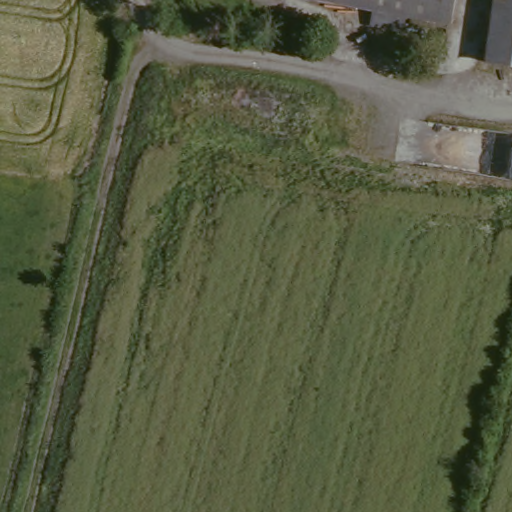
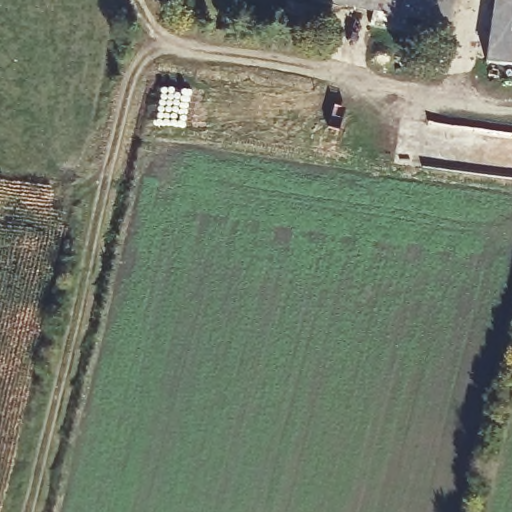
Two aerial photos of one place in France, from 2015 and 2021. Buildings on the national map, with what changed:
unchanged [(328,0),(459,0),(455,24),(328,0)]
unchanged [(498,0),(512,0),(512,66),(491,62),(498,0)]

